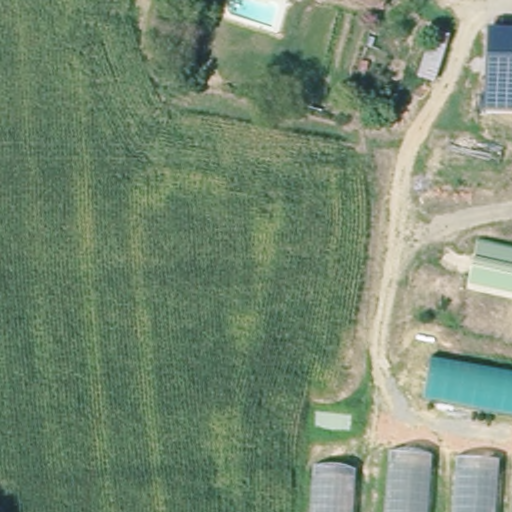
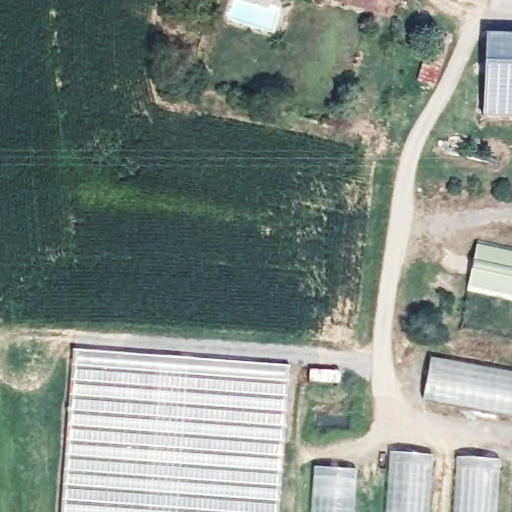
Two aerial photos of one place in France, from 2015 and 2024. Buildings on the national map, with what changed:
unchanged [(338,0),(387,0),(380,19),(338,0)]
unchanged [(432,81),(419,76),(431,38),(445,44),(432,81)]
unchanged [(484,39),(512,40),(512,121),(485,121),(484,39)]
unchanged [(512,299),(467,290),(476,244),(512,251),(512,299)]
new [(276,512),(61,512),(73,350),(287,365),(276,512)]
unchanged [(431,360),(512,374),(512,416),(425,402),(431,360)]
unchanged [(428,512),(384,512),(387,456),(431,459),(428,512)]
unchanged [(495,512),(452,512),(454,464),(498,466),(495,512)]
unchanged [(316,474),(327,475),(351,476),(349,512),(313,512),(316,474)]

